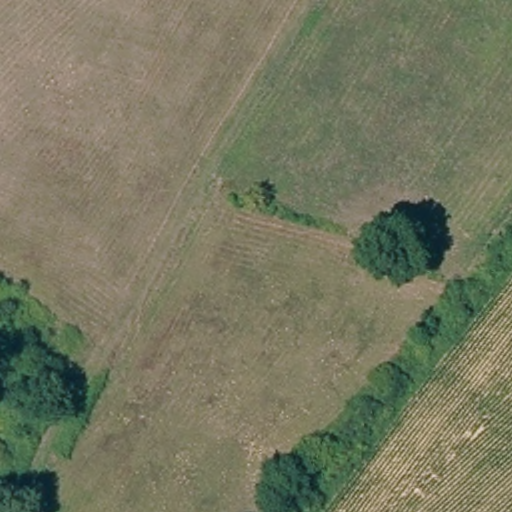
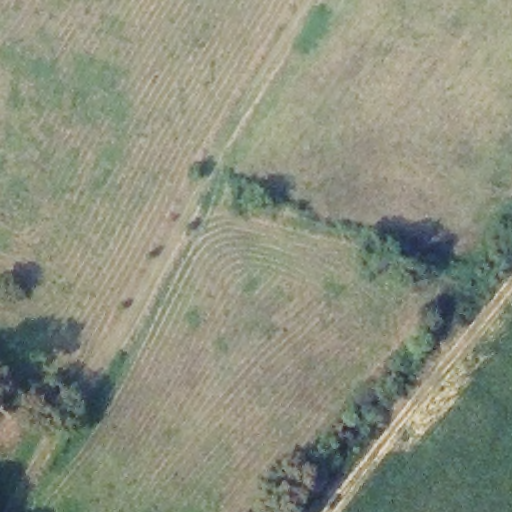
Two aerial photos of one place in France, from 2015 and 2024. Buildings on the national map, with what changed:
[]

